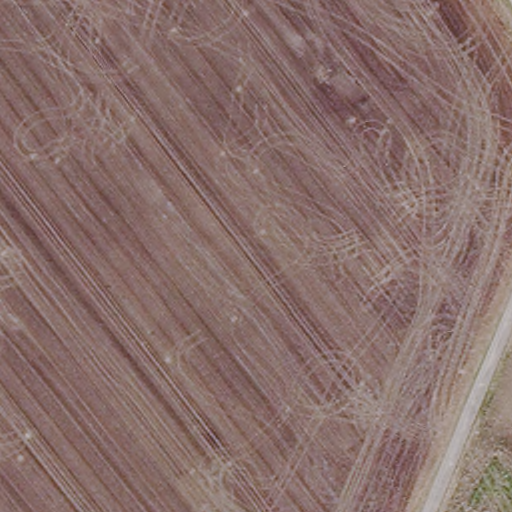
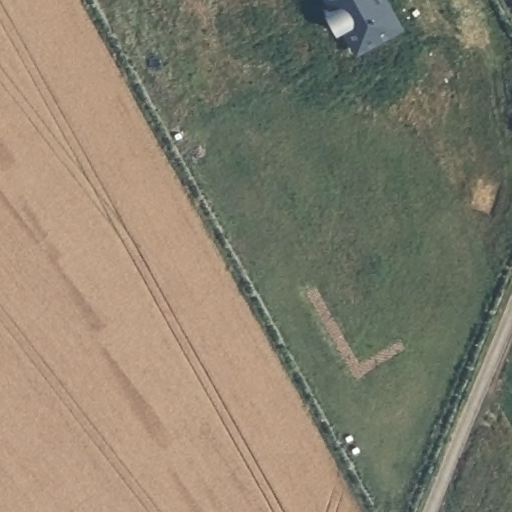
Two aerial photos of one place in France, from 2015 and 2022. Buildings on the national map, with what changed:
new [(400,26),(356,52),(341,27),(336,30),(325,11),(330,7),(326,0),(385,0),(400,26)]

